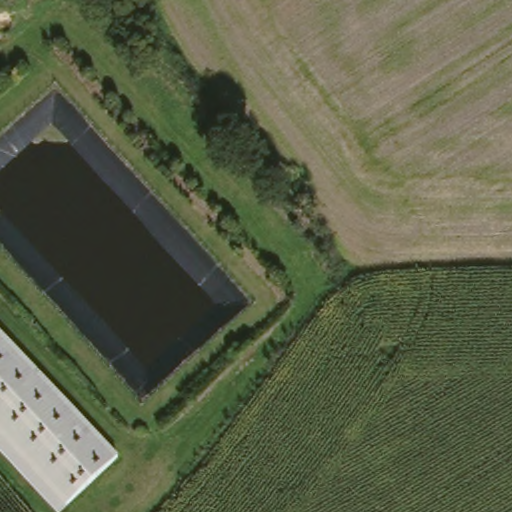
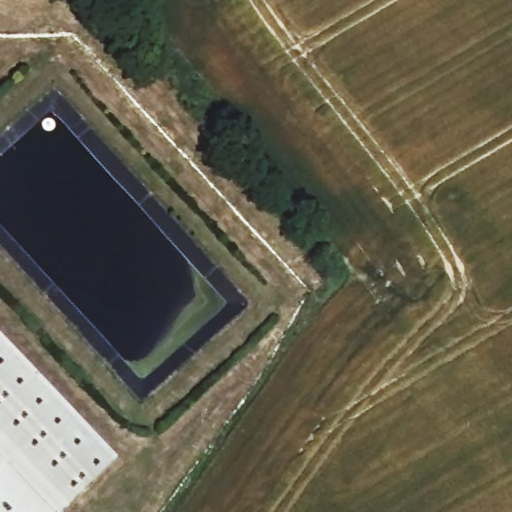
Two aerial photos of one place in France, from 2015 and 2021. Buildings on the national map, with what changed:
unchanged [(118,455),(63,505),(0,442),(0,331),(118,455)]
new [(63,505),(55,511),(57,512),(0,512),(0,442),(63,505)]

